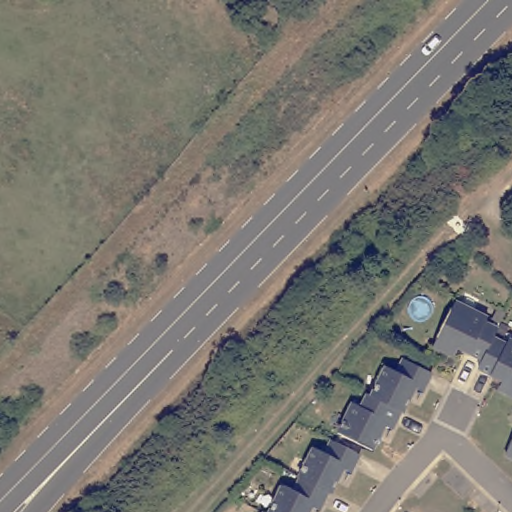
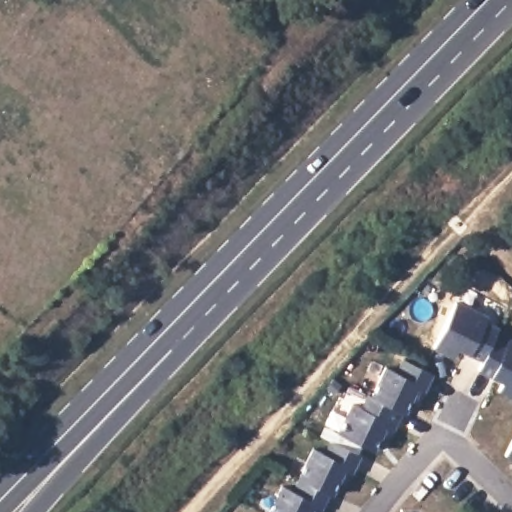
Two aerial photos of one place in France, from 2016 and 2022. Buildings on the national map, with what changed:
unchanged [(456,350),(452,360),(432,350),(453,305),(486,320),(483,325),(496,331),(492,340),(481,362),(456,350)]
unchanged [(492,340),(505,347),(507,342),(512,345),(512,400),(497,392),(501,383),(477,371),(481,362),(492,340)]
unchanged [(383,371),(394,377),(401,364),(429,378),(420,396),(413,392),(401,417),(398,416),(368,401),(383,371)]
unchanged [(389,433),(382,430),(370,455),(335,437),(350,408),(358,412),(365,400),(368,401),(398,416),(389,433)]
unchanged [(503,457),(512,440),(512,462),(503,457)]
unchanged [(296,482),(311,453),(322,458),(328,445),(357,460),(347,477),(340,474),(328,498),(325,497),(297,483),(296,482)]
unchanged [(318,512),(310,512),(309,511),(309,512),(269,512),(280,491),(292,496),(297,483),(325,497),(318,512)]

